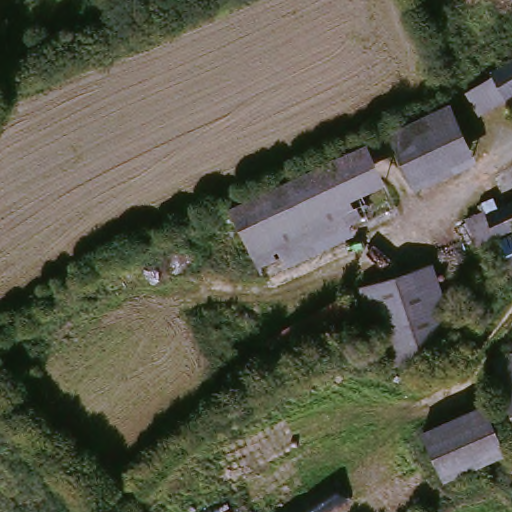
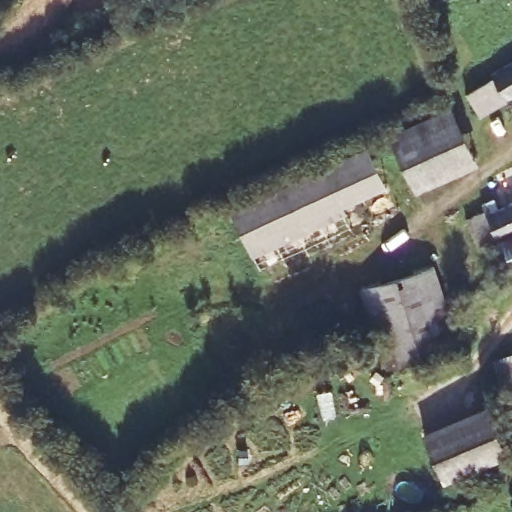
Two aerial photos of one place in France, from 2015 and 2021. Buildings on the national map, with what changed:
unchanged [(490,73),(512,60),(512,94),(505,99),(477,115),(463,88),(490,73)]
unchanged [(451,104),(474,158),(467,163),(415,187),(392,132),(451,104)]
unchanged [(370,155),(389,202),(256,265),(236,219),(370,155)]
unchanged [(493,227),(484,207),(490,204),(489,198),(501,192),(503,197),(512,193),(512,218),(509,220),(493,227)]
unchanged [(512,254),(510,255),(499,231),(512,225),(512,254)]
unchanged [(453,338),(384,363),(362,281),(430,258),(453,338)]
unchanged [(344,296),(359,330),(283,372),(267,337),(344,296)]
unchanged [(512,390),(505,393),(494,357),(512,350),(512,390)]
unchanged [(512,412),(508,400),(505,393),(512,390),(512,412)]
unchanged [(488,401),(506,451),(442,478),(424,428),(488,401)]

